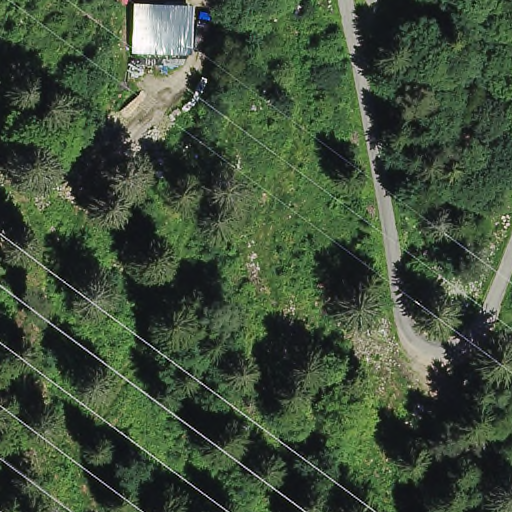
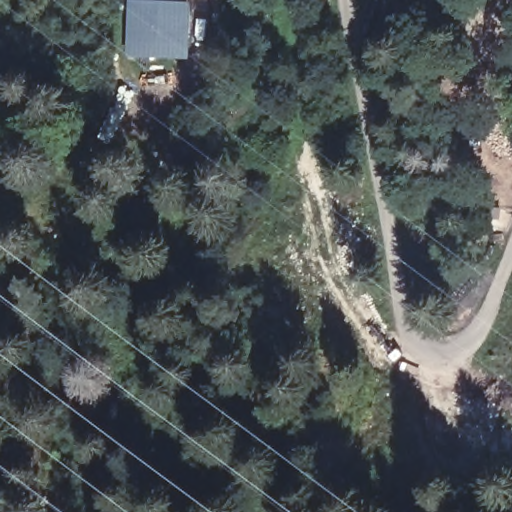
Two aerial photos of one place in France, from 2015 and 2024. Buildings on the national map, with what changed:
unchanged [(189,6),(186,51),(132,50),(133,5),(189,6)]

